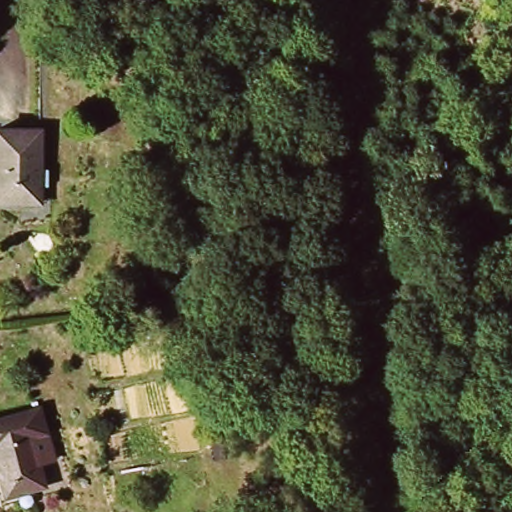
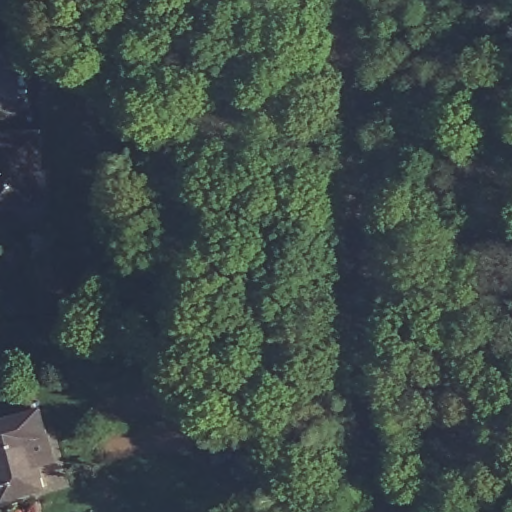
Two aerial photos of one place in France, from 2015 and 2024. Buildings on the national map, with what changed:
unchanged [(37,130),(37,198),(0,198),(0,130),(37,130)]
unchanged [(40,410),(46,434),(35,437),(45,486),(4,496),(0,497),(0,419),(40,410)]

